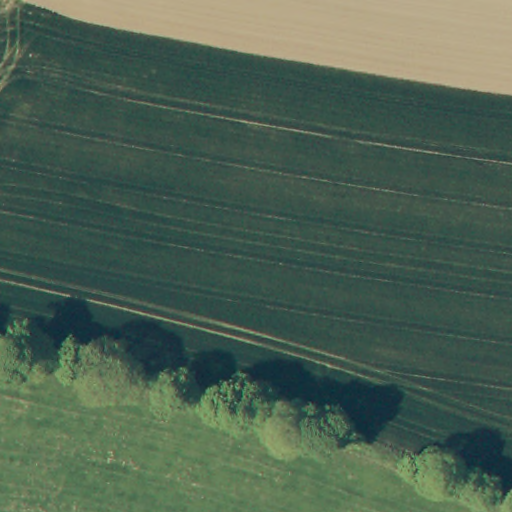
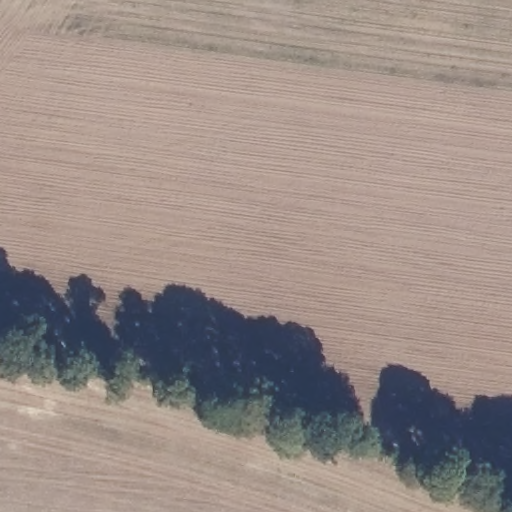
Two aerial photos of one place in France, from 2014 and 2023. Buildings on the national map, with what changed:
[]

